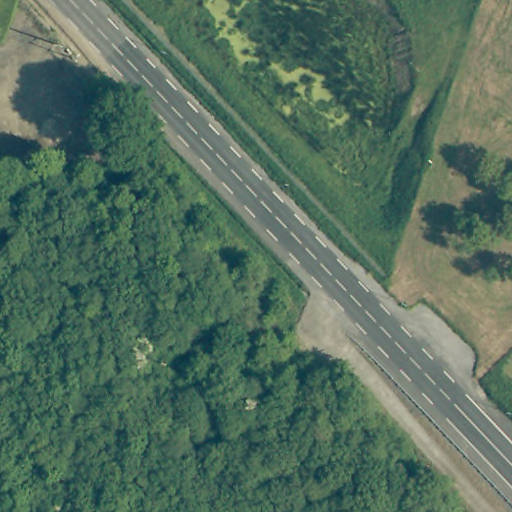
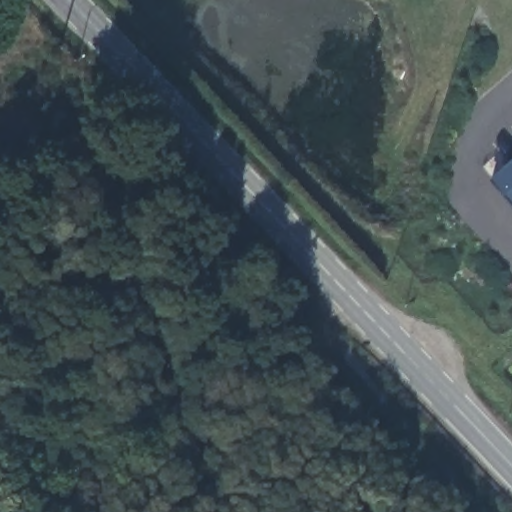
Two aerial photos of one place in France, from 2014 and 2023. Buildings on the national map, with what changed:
new [(512,160),(512,207),(488,180),(512,160)]

